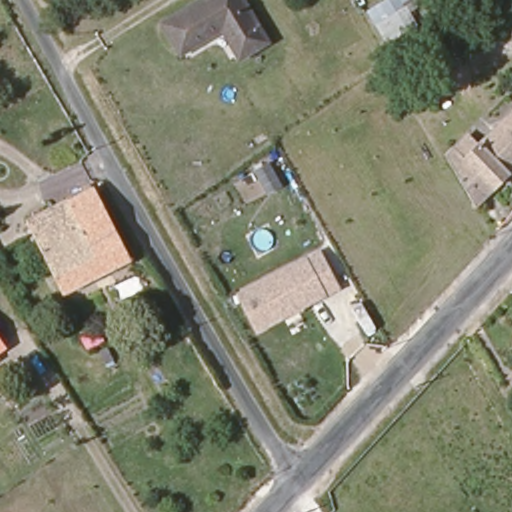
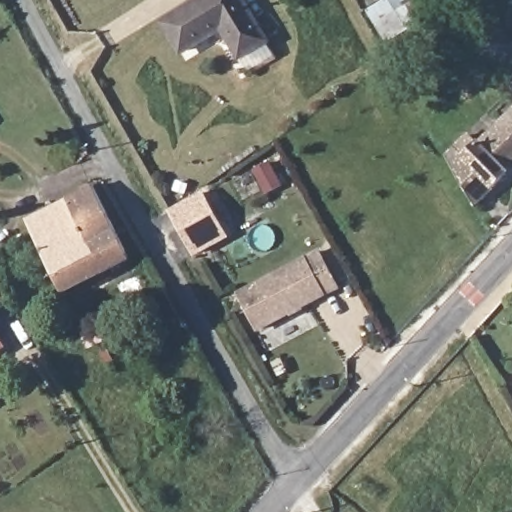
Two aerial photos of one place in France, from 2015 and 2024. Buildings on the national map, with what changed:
unchanged [(235,53),(219,25),(184,46),(166,19),(198,0),(244,0),(266,36),(235,53)]
unchanged [(368,8),(379,0),(423,0),(425,2),(414,10),(429,30),(397,55),(368,8)]
unchanged [(512,119),(512,173),(508,177),(479,151),(512,119)]
unchanged [(477,208),(460,178),(473,169),(453,149),(465,138),(479,151),(508,177),(477,208)]
new [(285,185),(267,195),(253,170),(271,160),(285,185)]
unchanged [(63,289),(27,219),(97,184),(131,254),(63,289)]
new [(204,191),(230,237),(194,258),(167,211),(204,191)]
unchanged [(236,293),(318,250),(340,290),(258,332),(236,293)]
unchanged [(6,349),(0,353),(0,341),(6,349)]

